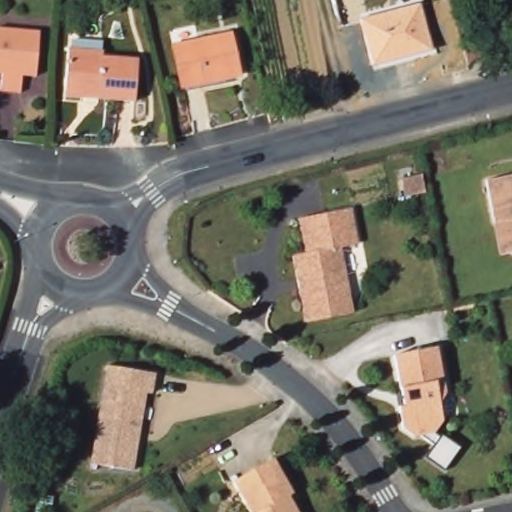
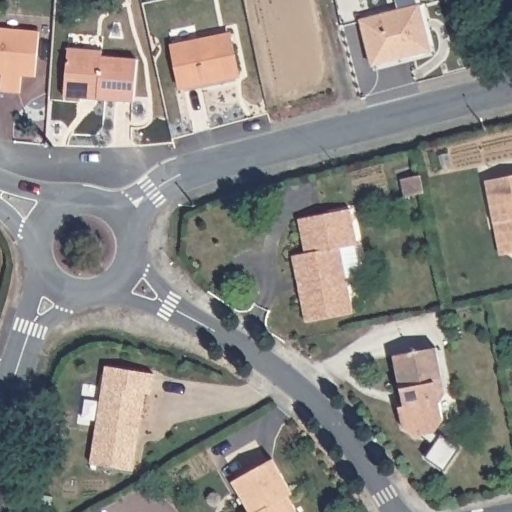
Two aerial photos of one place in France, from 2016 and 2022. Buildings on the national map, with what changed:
unchanged [(423,1),(438,49),(376,66),(361,19),(423,1)]
unchanged [(41,74),(27,73),(25,90),(3,89),(4,72),(0,72),(0,27),(43,29),(41,74)]
unchanged [(239,30),(245,73),(193,85),(184,87),(175,44),(184,42),(239,30)]
unchanged [(465,38),(468,53),(452,56),(448,42),(465,38)]
unchanged [(101,50),(100,56),(140,58),(138,100),(97,97),(98,92),(67,90),(70,48),(101,50)]
unchanged [(495,222),(486,179),(512,174),(512,251),(501,253),(495,222)]
unchanged [(298,215),(351,205),(359,243),(344,245),(355,307),(310,317),(296,256),(306,254),(298,215)]
unchanged [(441,349),(446,384),(440,385),(448,429),(445,437),(423,440),(407,434),(402,402),(410,401),(402,355),(441,349)]
unchanged [(90,459),(106,362),(157,373),(155,393),(149,392),(136,468),(90,459)]
unchanged [(232,480),(276,459),(295,491),(286,496),(295,512),(251,512),(232,480)]

